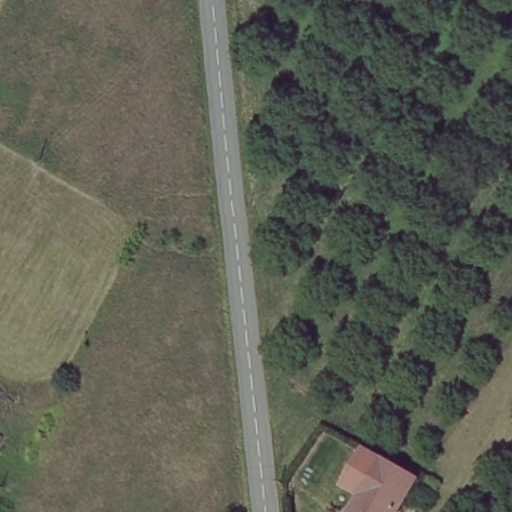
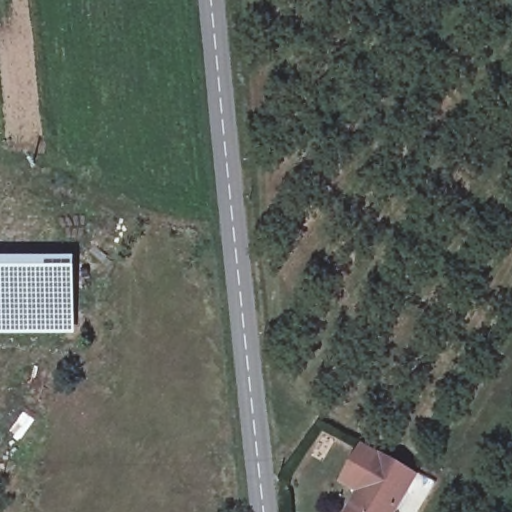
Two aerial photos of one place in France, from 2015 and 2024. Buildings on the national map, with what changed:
new [(75,335),(0,336),(0,258),(74,258),(75,335)]
unchanged [(416,491),(401,512),(345,512),(376,466),(416,491)]

